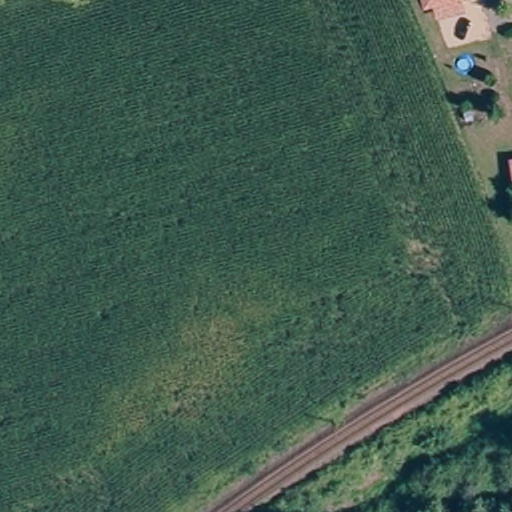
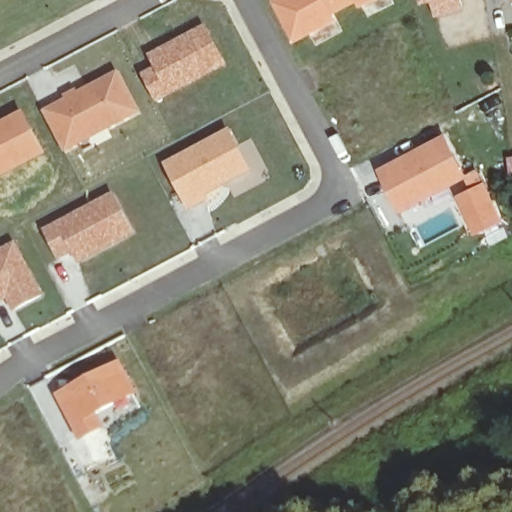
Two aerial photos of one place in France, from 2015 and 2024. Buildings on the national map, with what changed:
new [(337,15),(339,19),(293,43),(272,0),(355,0),(357,4),(337,15)]
new [(357,4),(355,0),(373,0),(359,7),(357,4)]
unchanged [(469,0),(469,1),(444,7),(442,0),(469,0)]
new [(153,67),(147,55),(208,23),(230,66),(157,103),(140,74),(153,67)]
new [(139,113),(109,129),(106,124),(78,139),(82,144),(66,152),(45,115),(118,75),(139,113)]
new [(24,111),(47,156),(0,180),(0,123),(24,111)]
new [(230,128),(254,171),(188,211),(164,163),(230,128)]
new [(444,132),(468,175),(467,176),(440,192),(398,212),(377,168),(444,132)]
unchanged [(512,163),(512,183),(511,183),(508,163),(512,163)]
new [(472,186),(467,176),(468,175),(479,168),(506,220),(474,234),(457,194),(472,186)]
new [(114,192),(138,236),(78,267),(72,255),(60,261),(42,229),(114,192)]
new [(47,295),(13,314),(5,300),(0,303),(0,248),(17,239),(47,295)]
new [(120,360),(138,396),(101,416),(107,427),(77,443),(54,395),(120,360)]

